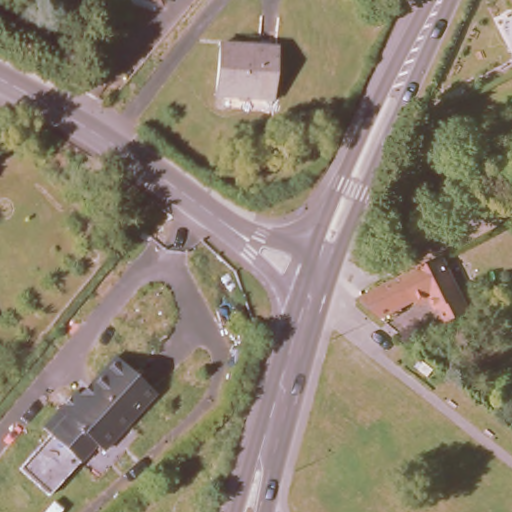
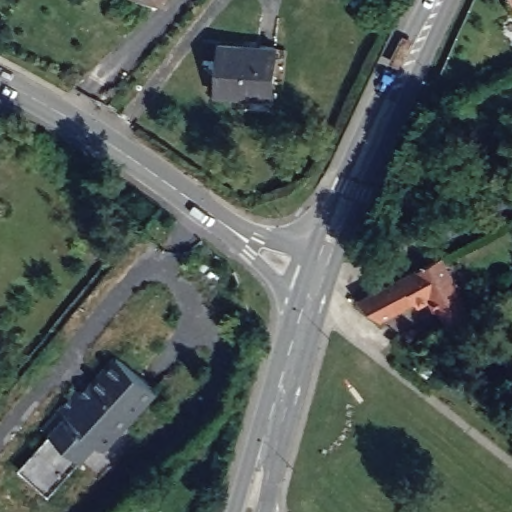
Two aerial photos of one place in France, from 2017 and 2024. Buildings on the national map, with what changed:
unchanged [(148,0),(161,0),(160,4),(148,0)]
unchanged [(266,101),(211,95),(216,41),(272,46),(266,101)]
unchanged [(395,202),(415,167),(431,177),(412,212),(395,202)]
unchanged [(389,237),(384,227),(404,218),(409,228),(389,237)]
unchanged [(444,322),(437,307),(435,308),(430,300),(415,306),(413,302),(379,318),(356,297),(415,267),(437,257),(457,297),(464,311),(444,322)]
unchanged [(158,397),(106,455),(98,448),(51,500),(21,473),(68,421),(61,414),(78,395),(86,402),(97,390),(94,387),(118,361),(158,397)]

